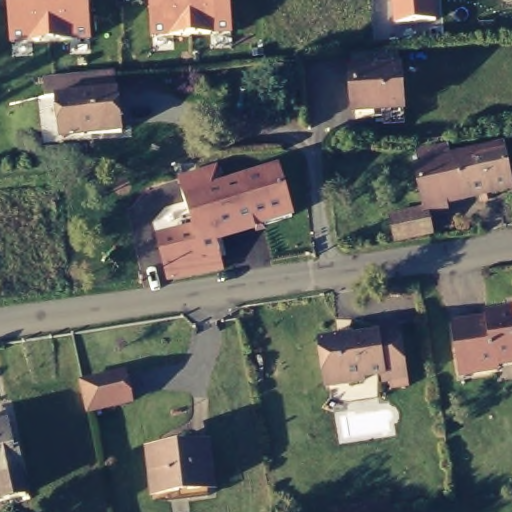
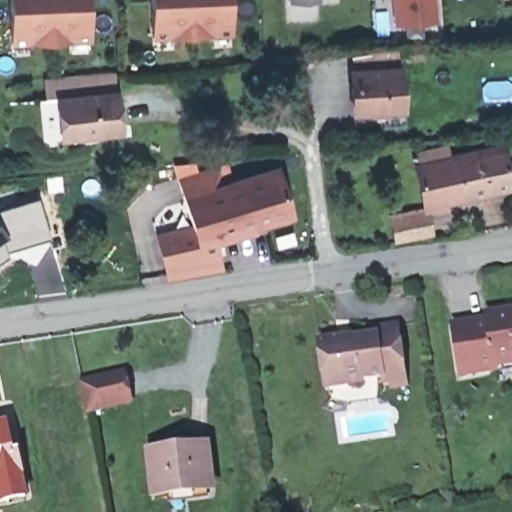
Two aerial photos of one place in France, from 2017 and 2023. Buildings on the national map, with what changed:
unchanged [(89,0),(91,41),(11,45),(9,0),(89,0)]
unchanged [(231,0),(232,34),(152,39),(150,0),(231,0)]
new [(289,0),(319,0),(319,1),(290,1),(289,0)]
unchanged [(436,0),(437,21),(395,26),(392,0),(436,0)]
unchanged [(346,107),(343,65),(391,62),(394,104),(346,107)]
unchanged [(61,135),(57,102),(48,104),(46,82),(113,76),(115,96),(117,95),(122,137),(83,141),(62,143),(61,135)]
unchanged [(477,195),(459,199),(458,195),(443,198),(444,202),(419,207),(410,165),(414,164),(411,153),(443,146),(446,157),(498,146),(502,166),(512,164),(512,188),(506,190),(506,189),(487,192),(489,200),(478,202),(477,195)]
unchanged [(218,269),(165,278),(152,237),(177,229),(168,202),(179,197),(173,181),(230,162),(236,180),(272,168),(287,217),(251,227),(210,240),(218,269)]
new [(8,253),(0,258),(0,204),(40,194),(51,237),(19,245),(7,247),(8,253)]
unchanged [(425,232),(391,240),(387,219),(421,212),(425,232)]
unchanged [(492,368),(456,374),(449,325),(483,320),(483,315),(492,313),(492,317),(505,316),(504,312),(512,310),(512,361),(491,365),(492,368)]
unchanged [(380,382),(379,375),(358,378),(358,382),(322,387),(315,340),(336,337),(345,336),(345,338),(372,334),(371,328),(394,325),(401,372),(402,378),(380,382)]
unchanged [(132,402),(89,411),(82,382),(126,372),(132,402)]
unchanged [(0,503),(0,428),(10,426),(13,442),(19,441),(31,496),(0,503)]
unchanged [(171,496),(170,488),(157,490),(152,448),(207,442),(212,483),(207,483),(208,492),(171,496)]

